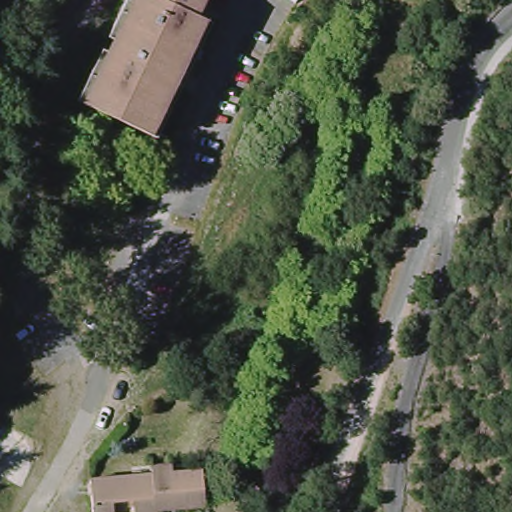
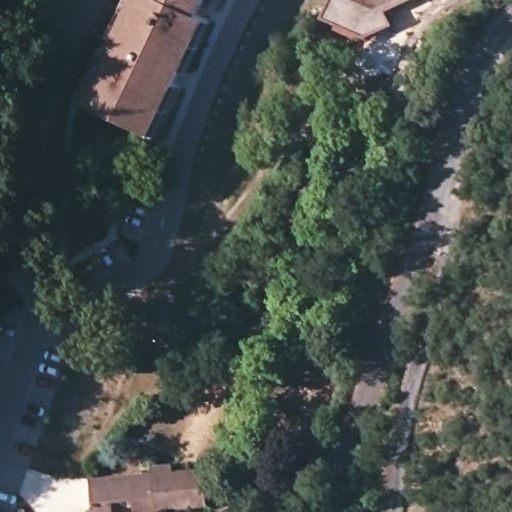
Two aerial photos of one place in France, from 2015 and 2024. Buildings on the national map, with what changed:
unchanged [(211,19),(187,66),(177,62),(170,79),(177,84),(154,131),(90,100),(112,51),(121,55),(127,38),(120,35),(135,0),(207,0),(201,13),(211,19)]
new [(392,26),(365,38),(323,18),(332,0),(410,0),(387,11),(392,26)]
unchanged [(95,475),(157,472),(157,462),(181,460),(180,470),(208,469),(207,506),(158,508),(158,512),(95,512),(95,475)]

